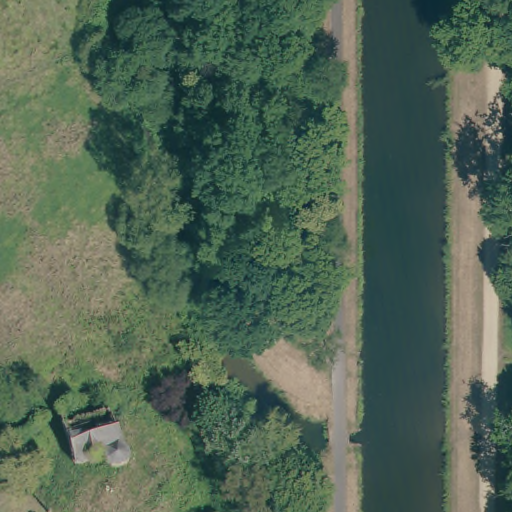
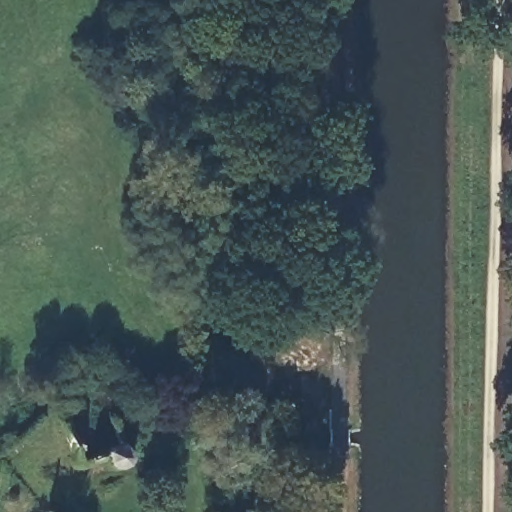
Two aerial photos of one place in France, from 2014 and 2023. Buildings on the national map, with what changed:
unchanged [(137,460),(134,468),(127,475),(119,473),(108,460),(77,468),(60,415),(69,409),(77,406),(115,396),(137,460)]

